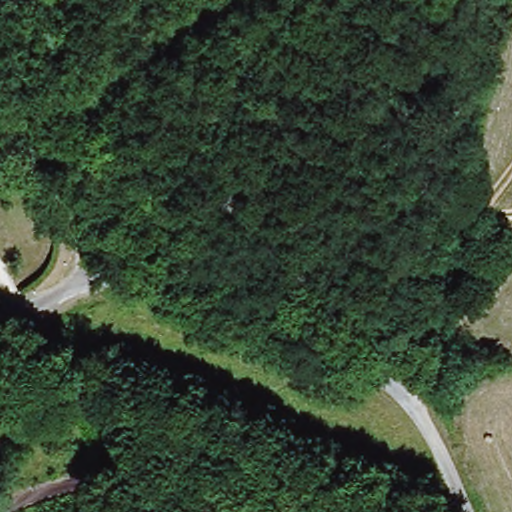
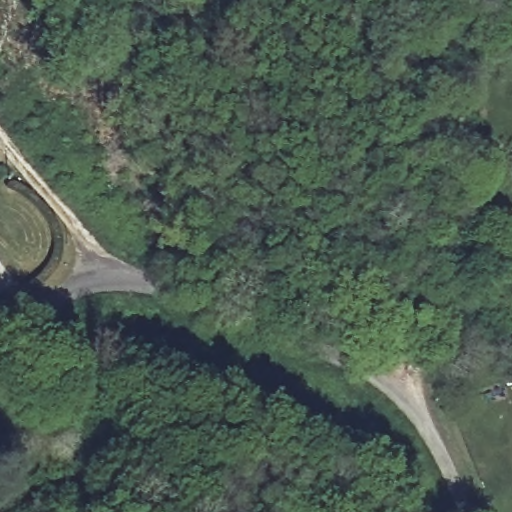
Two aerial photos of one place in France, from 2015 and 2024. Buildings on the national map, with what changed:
[]

